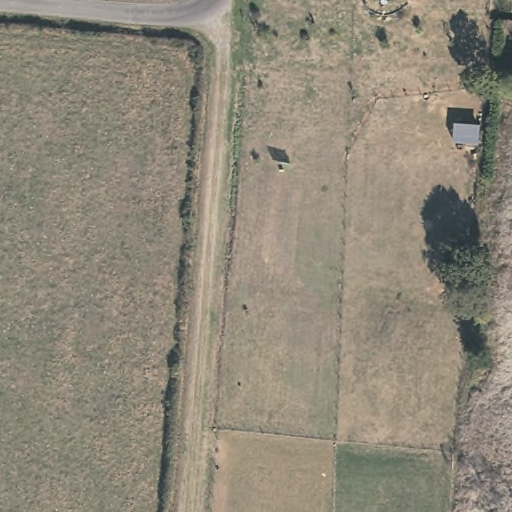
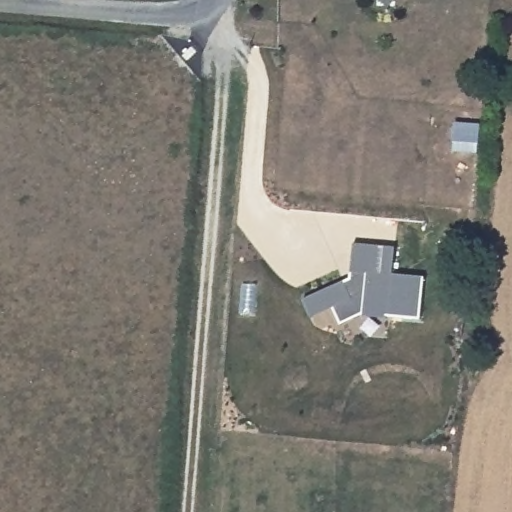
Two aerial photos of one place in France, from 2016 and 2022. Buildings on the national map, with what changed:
new [(394,246),(392,274),(423,277),(420,320),(362,315),(340,324),(332,307),(310,317),(301,300),(348,279),(351,242),(394,246)]

